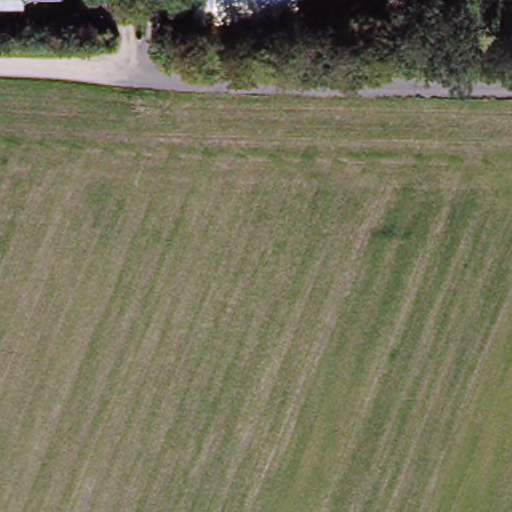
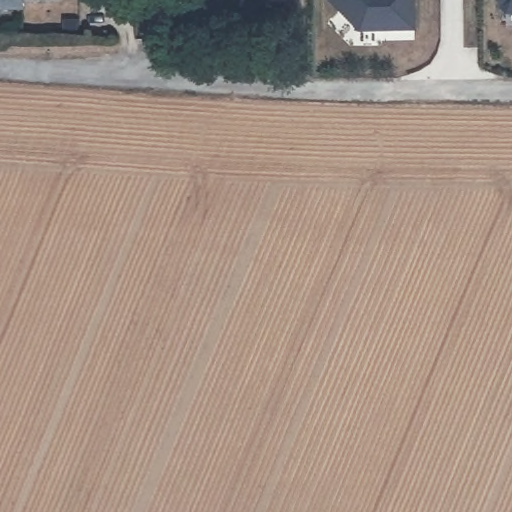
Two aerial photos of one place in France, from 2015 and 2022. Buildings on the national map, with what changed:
unchanged [(29,9),(0,9),(0,0),(67,0),(29,0),(29,9)]
unchanged [(198,21),(197,0),(221,0),(221,21),(198,21)]
unchanged [(221,21),(221,0),(301,0),(301,21),(221,21)]
new [(356,26),(330,0),(409,0),(411,25),(356,26)]
new [(504,11),(499,6),(499,0),(512,0),(512,11),(504,11)]

